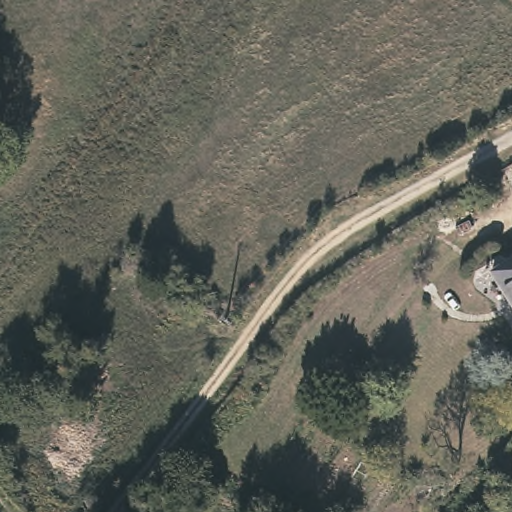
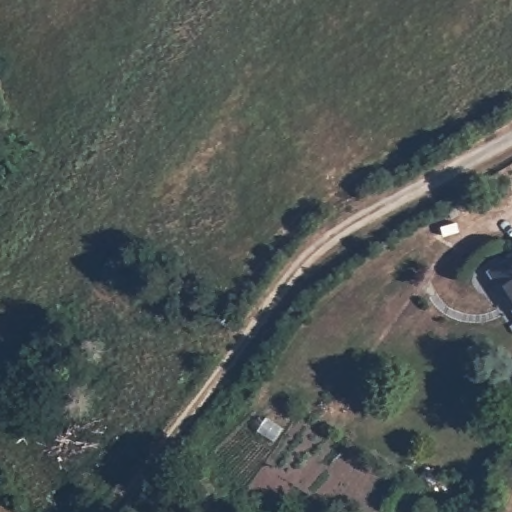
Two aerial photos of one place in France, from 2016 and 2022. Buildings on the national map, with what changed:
unchanged [(512,256),(512,299),(492,270),(512,256)]

